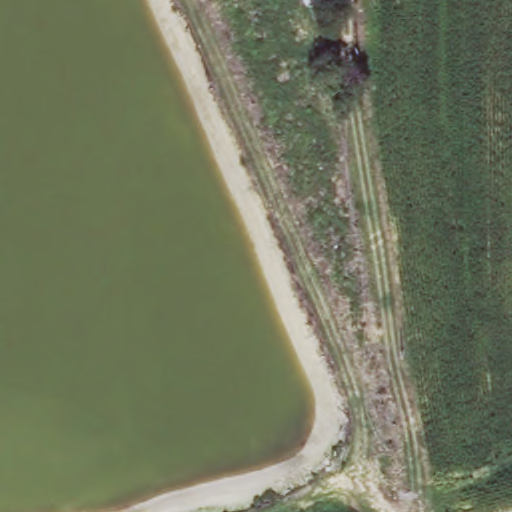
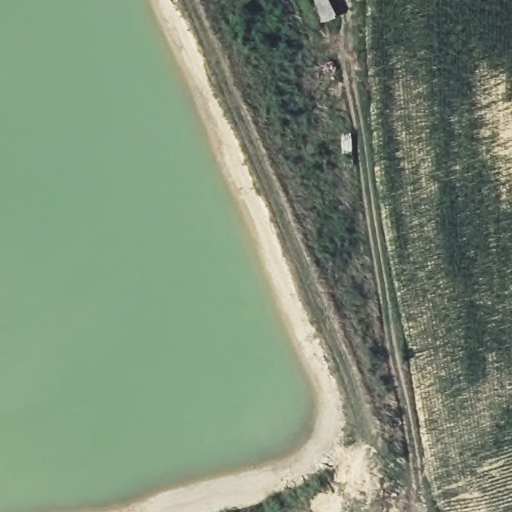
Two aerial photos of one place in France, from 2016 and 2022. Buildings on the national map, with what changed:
unchanged [(324,21),(311,0),(332,0),(334,4),(339,14),(324,21)]

